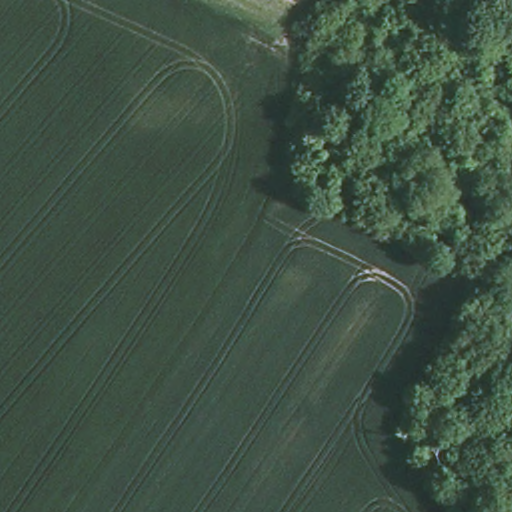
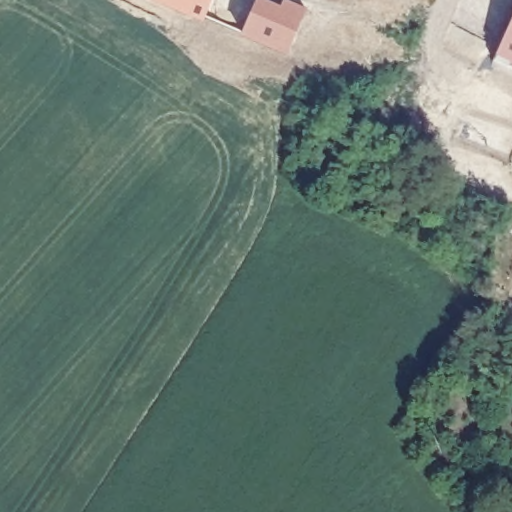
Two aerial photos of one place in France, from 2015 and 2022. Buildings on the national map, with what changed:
new [(205,20),(159,0),(212,0),(205,20)]
new [(290,54),(239,34),(254,0),(264,0),(279,6),(281,0),(283,0),(305,8),(290,54)]
new [(497,57),(512,21),(512,63),(497,57)]

